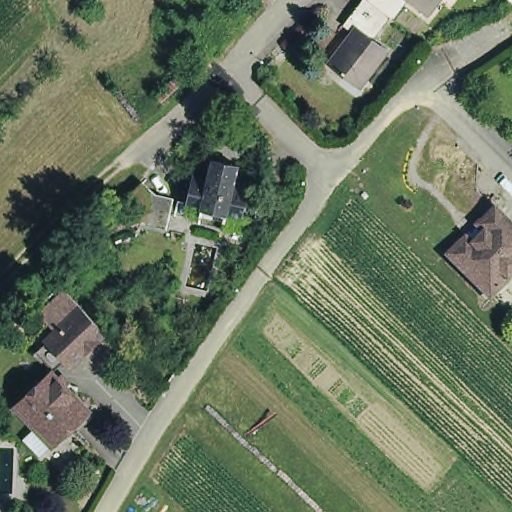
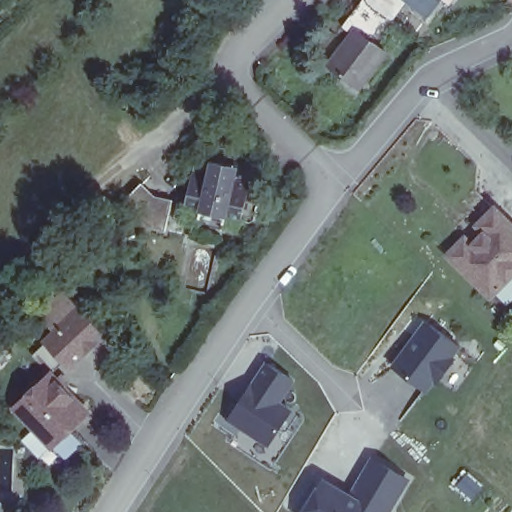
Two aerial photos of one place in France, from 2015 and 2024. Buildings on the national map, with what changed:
unchanged [(383,60),(360,89),(347,79),(342,85),(324,71),(354,32),(345,25),(361,5),(364,7),(369,0),(384,0),(400,13),(389,27),(388,26),(386,25),(370,45),(368,48),(383,60)]
unchanged [(438,4),(424,22),(395,0),(433,0),(438,4)]
unchanged [(320,57),(313,52),(309,48),(326,27),(329,29),(337,35),(320,57)]
unchanged [(236,167),(255,171),(243,219),(227,215),(224,231),(199,225),(201,217),(203,209),(187,206),(198,158),(236,167)]
unchanged [(142,186),(156,198),(175,203),(167,233),(142,226),(121,207),(142,186)]
unchanged [(440,251),(456,234),(463,241),(476,227),(469,221),(485,204),(512,231),(512,260),(486,287),(481,291),(440,251)]
unchanged [(486,287),(512,260),(512,288),(500,301),(486,287)]
unchanged [(105,334),(85,352),(72,365),(49,341),(60,331),(43,312),(65,291),(105,334)]
new [(450,359),(454,362),(440,380),(436,377),(426,391),(395,367),(417,337),(428,323),(431,325),(460,346),(450,359)]
new [(293,379),(278,401),(294,411),(270,449),(222,419),(236,397),(245,403),(269,364),(293,379)]
unchanged [(34,437),(11,414),(38,389),(47,380),(53,387),(58,382),(64,388),(59,393),(77,412),(83,418),(63,438),(51,449),(48,452),(34,437)]
new [(391,512),(302,512),(321,477),(356,499),(378,462),(413,479),(391,512)]

